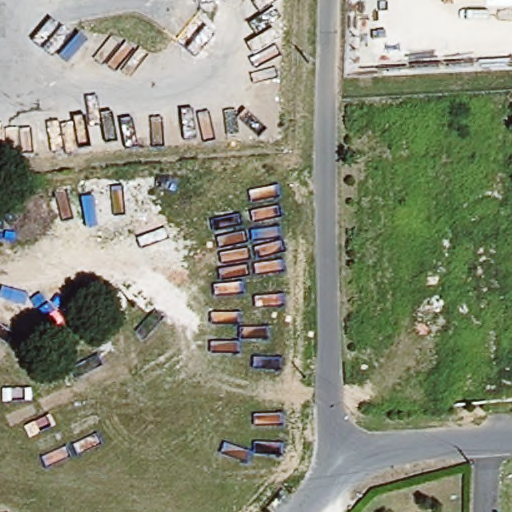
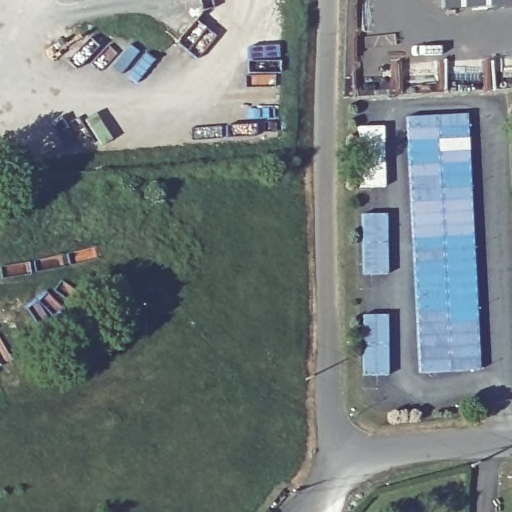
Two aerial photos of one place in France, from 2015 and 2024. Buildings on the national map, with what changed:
new [(467,112),(480,369),(418,373),(404,115),(467,112)]
new [(383,124),(385,188),(356,189),(353,126),(383,124)]
new [(386,212),(387,274),(360,275),(359,213),(386,212)]
new [(387,313),(387,377),(359,376),(359,314),(387,313)]

